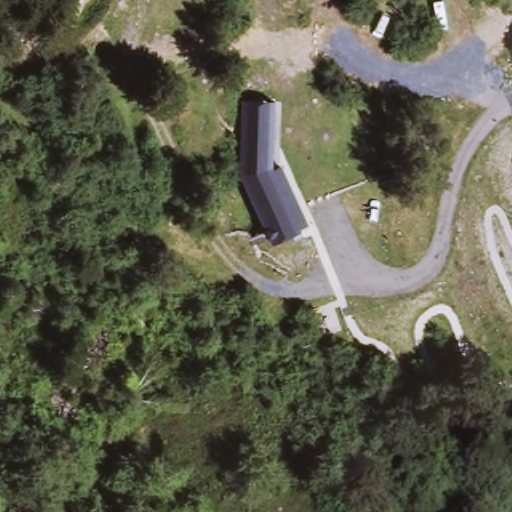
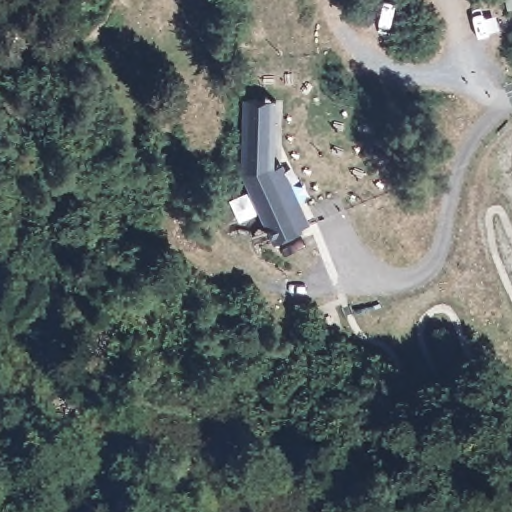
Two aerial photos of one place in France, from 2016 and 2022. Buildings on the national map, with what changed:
unchanged [(244,178),(236,179),(240,100),(276,101),(272,163),(244,178)]
unchanged [(272,163),(305,232),(273,245),(244,178),(272,163)]

